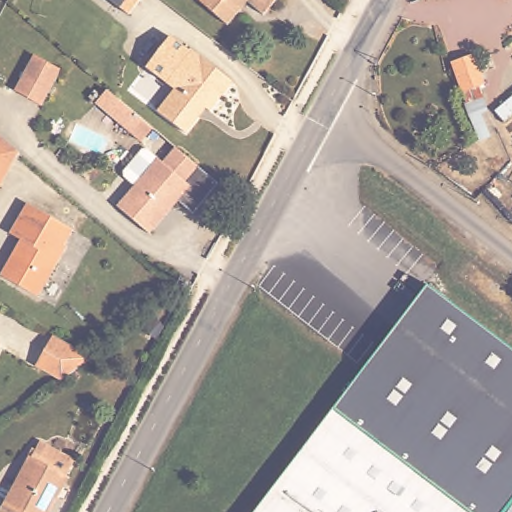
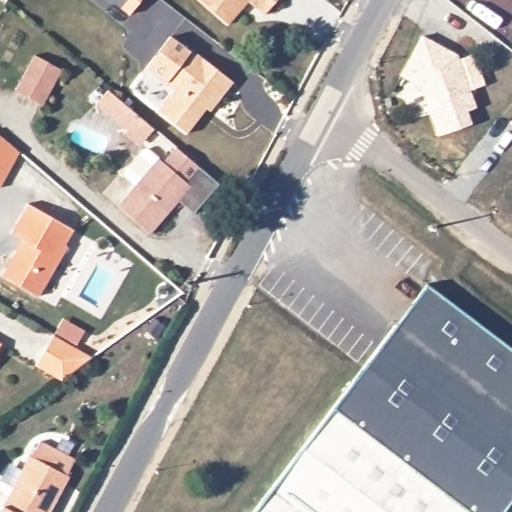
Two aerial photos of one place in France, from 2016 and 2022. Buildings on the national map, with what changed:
unchanged [(113,0),(139,0),(129,12),(113,0)]
unchanged [(218,0),(249,0),(235,15),(218,0)]
unchanged [(266,0),(278,0),(273,6),(266,0)]
new [(473,9),(502,37),(487,52),(459,24),(473,9)]
unchanged [(196,40),(238,74),(215,103),(210,100),(190,125),(163,101),(179,80),(151,58),(176,27),(194,42),(196,40)]
new [(458,55),(459,59),(474,55),(485,85),(470,90),(477,109),(468,112),(472,124),(437,137),(419,87),(399,77),(422,36),(458,55)]
unchanged [(60,66),(40,102),(14,87),(29,59),(33,51),(60,66)]
demolished [(451,61),(473,54),(483,85),(478,86),(482,99),(466,105),(451,61)]
unchanged [(152,140),(137,127),(106,101),(99,95),(104,90),(111,96),(118,87),(133,100),(149,114),(164,126),(152,140)]
unchanged [(1,190),(0,189),(0,135),(21,152),(1,190)]
unchanged [(197,179),(201,184),(160,230),(128,202),(144,184),(134,174),(134,169),(153,147),(158,147),(173,161),(187,145),(209,165),(197,179)]
unchanged [(69,235),(72,236),(44,287),(7,266),(26,230),(16,224),(31,194),(78,219),(69,235)]
unchanged [(512,336),(512,492),(496,512),(480,512),(334,401),(431,274),(512,336)]
unchanged [(88,355),(55,376),(29,361),(46,331),(88,355)]
unchanged [(0,332),(5,335),(0,344),(0,332)]
unchanged [(334,401),(480,512),(250,512),(334,401)]
unchanged [(46,512),(7,512),(0,505),(7,492),(34,440),(36,441),(44,426),(79,445),(71,460),(73,461),(46,512)]
unchanged [(512,492),(512,512),(496,512),(512,492)]

